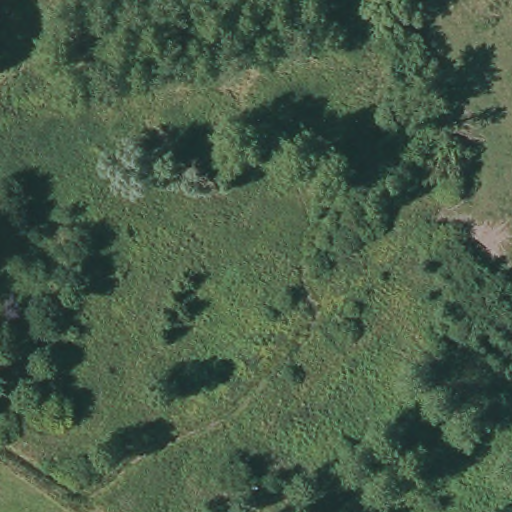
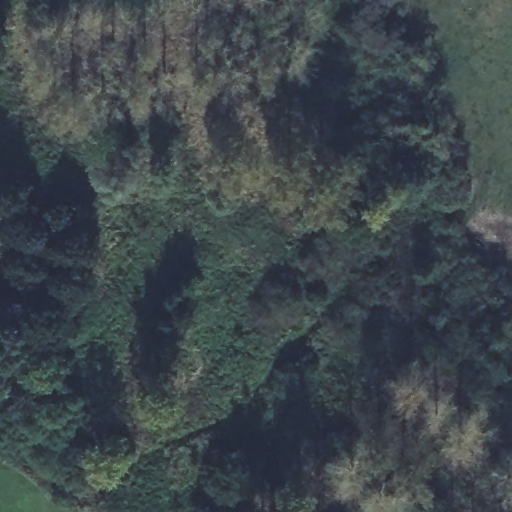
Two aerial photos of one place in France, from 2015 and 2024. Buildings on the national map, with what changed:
[]

